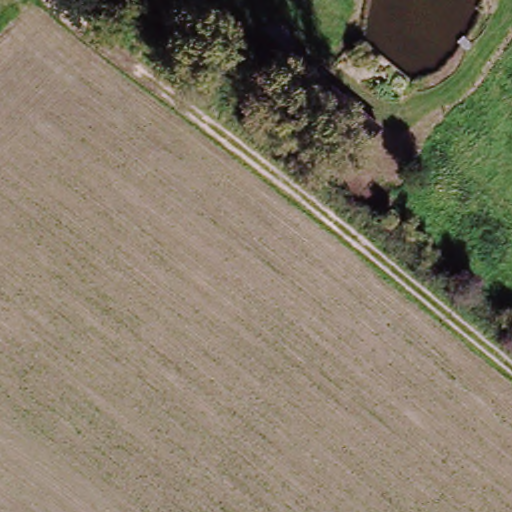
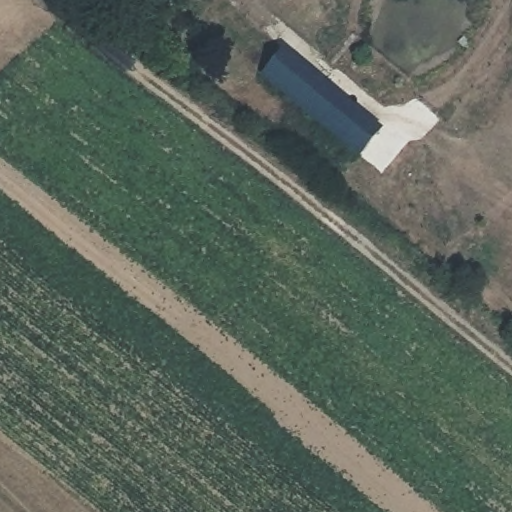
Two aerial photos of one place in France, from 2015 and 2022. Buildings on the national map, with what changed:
new [(382,129),(360,157),(259,73),(282,46),(382,129)]

